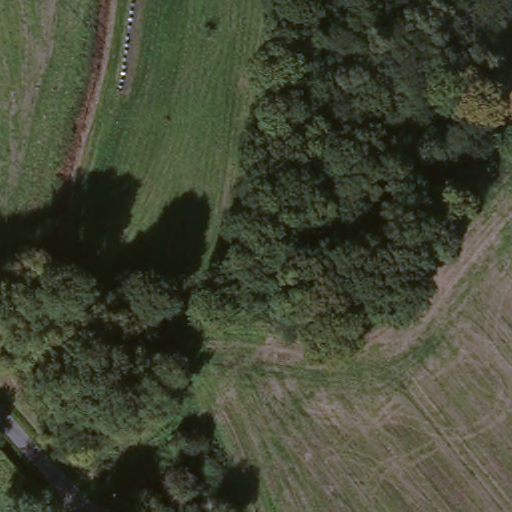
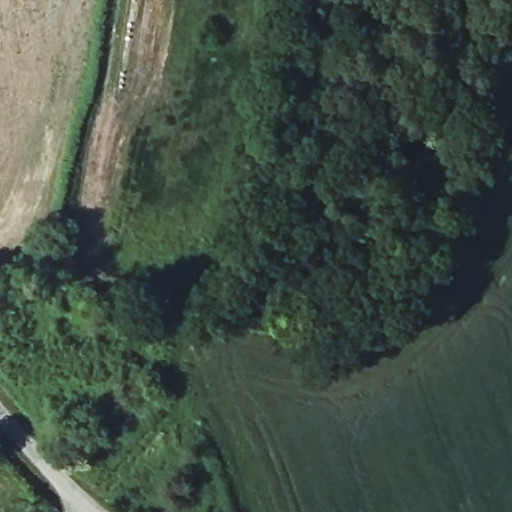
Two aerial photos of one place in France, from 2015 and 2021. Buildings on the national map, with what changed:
unchanged [(70,431),(65,425),(99,406),(117,435),(74,460),(55,440),(70,431)]

